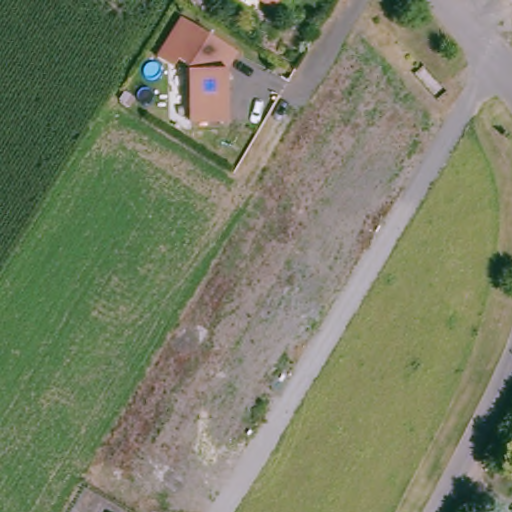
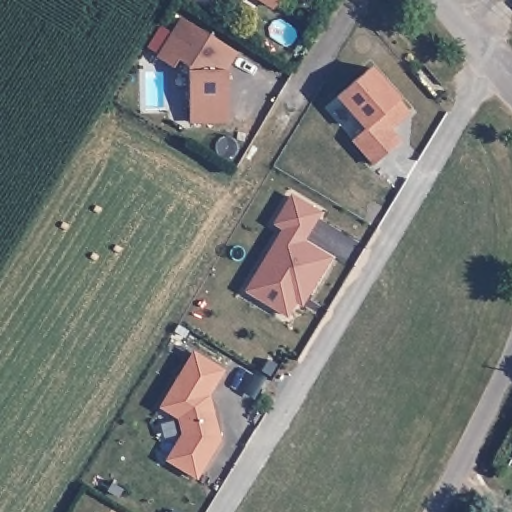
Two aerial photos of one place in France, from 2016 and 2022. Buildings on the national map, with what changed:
unchanged [(267,5),(259,0),(275,0),(270,6),(267,5)]
unchanged [(235,52),(227,66),(229,120),(191,122),(188,65),(178,59),(173,67),(158,58),(182,19),(235,52)]
new [(372,165),(352,140),(364,129),(335,99),(372,67),(400,100),(410,113),(392,130),(402,140),(372,165)]
new [(295,303),(287,317),(245,290),(280,230),(272,225),(291,193),(322,214),(305,241),(332,258),(302,306),(295,303)]
new [(195,352),(223,370),(208,396),(220,440),(197,476),(169,459),(185,432),(180,417),(162,405),(195,352)]

